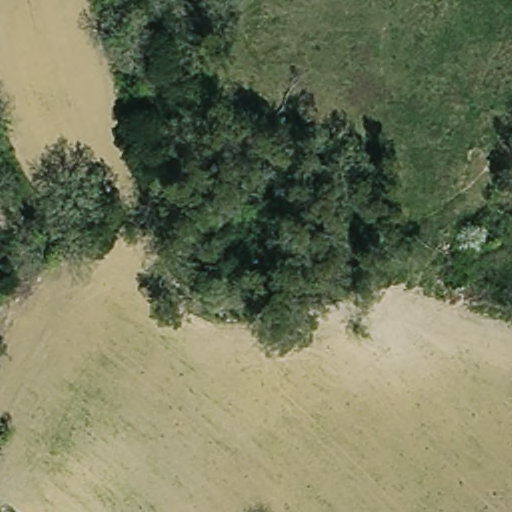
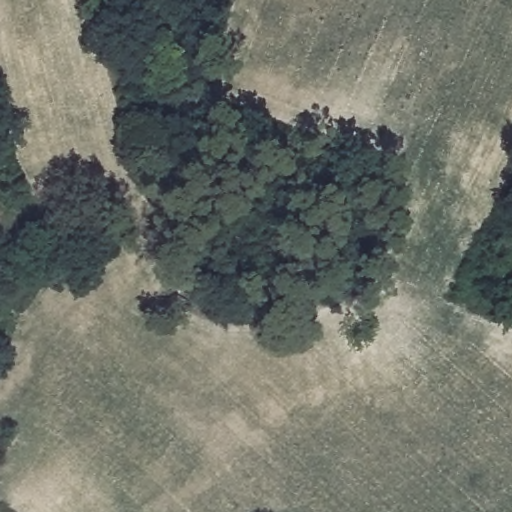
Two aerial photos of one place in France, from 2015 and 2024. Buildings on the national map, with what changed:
[]

